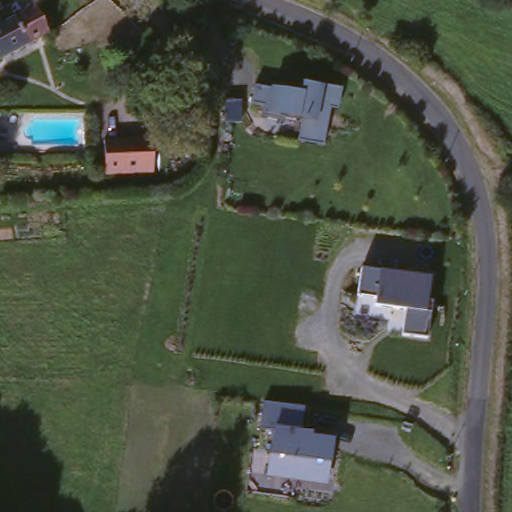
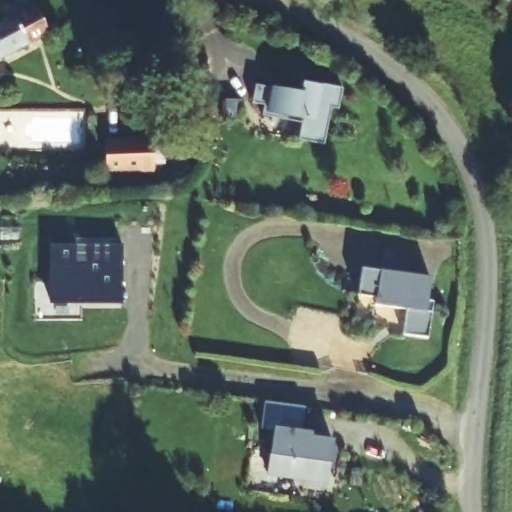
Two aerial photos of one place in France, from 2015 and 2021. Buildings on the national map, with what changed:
unchanged [(1,13),(6,24),(30,13),(46,42),(0,59),(0,11),(1,13)]
unchanged [(339,111),(331,109),(326,145),(298,140),(300,120),(264,114),(264,105),(250,103),(253,83),(300,89),(302,79),(342,86),(339,111)]
unchanged [(149,136),(150,168),(103,169),(102,137),(149,136)]
new [(80,247),(89,247),(124,247),(124,302),(54,303),(54,247),(80,247)]
unchanged [(428,302),(433,302),(429,336),(404,333),(406,309),(374,304),(376,296),(358,294),(361,269),(432,278),(428,302)]
unchanged [(326,482),(267,473),(272,431),(259,430),(263,399),(306,406),(304,431),(315,433),(315,437),(334,441),(326,482)]

